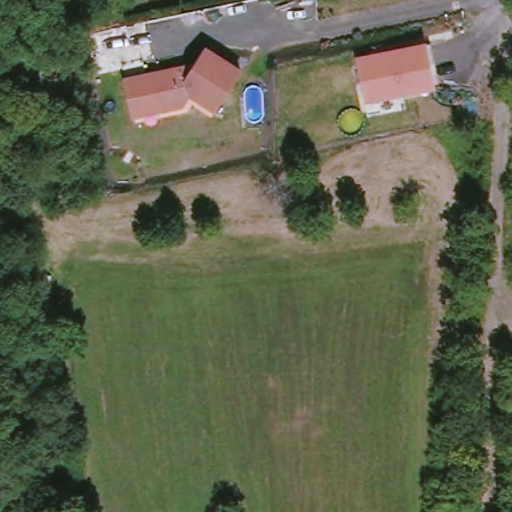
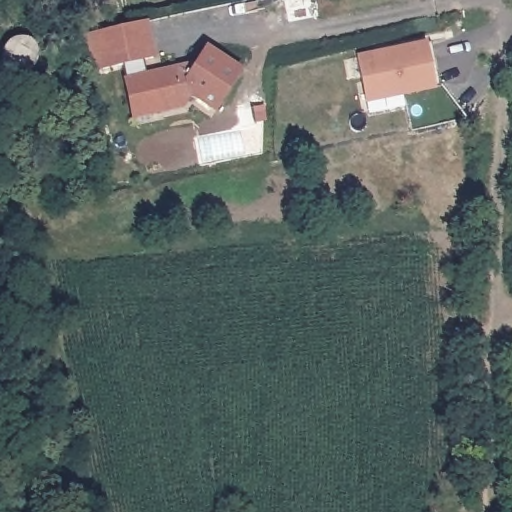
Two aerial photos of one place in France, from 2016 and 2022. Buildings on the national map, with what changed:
new [(155,58),(90,69),(84,34),(148,21),(155,58)]
unchanged [(359,58),(429,44),(434,43),(443,86),(438,88),(368,101),(359,58)]
unchanged [(216,114),(191,99),(183,110),(134,120),(126,79),(199,61),(209,48),(244,71),(216,114)]

